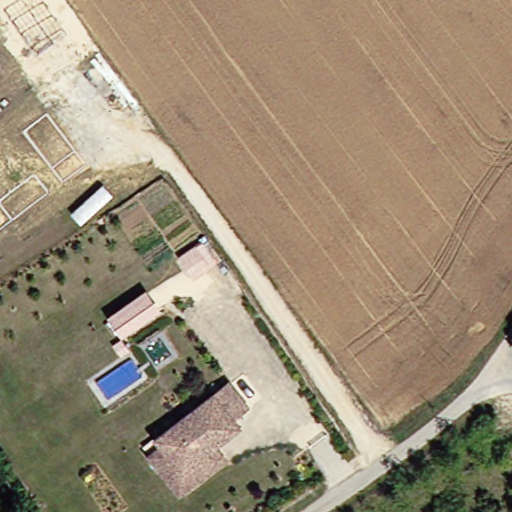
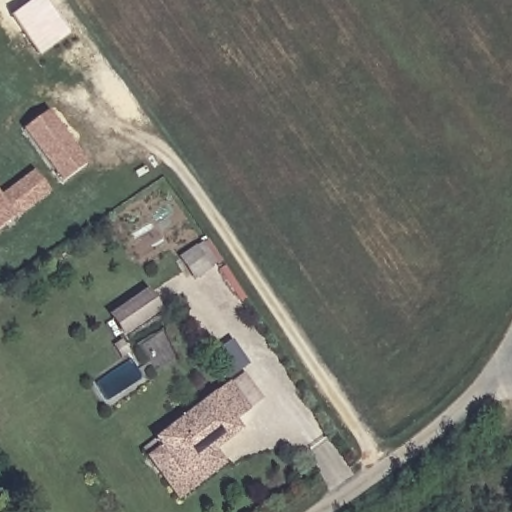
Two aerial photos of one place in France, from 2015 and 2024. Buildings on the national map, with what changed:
new [(29,0),(47,0),(70,33),(38,55),(9,15),(29,0)]
new [(48,112),(85,163),(62,182),(24,130),(48,112)]
new [(47,192),(0,227),(0,200),(33,174),(47,192)]
unchanged [(208,264),(221,283),(207,292),(194,273),(208,264)]
unchanged [(162,311),(124,338),(108,316),(147,289),(162,311)]
unchanged [(244,417),(230,429),(237,437),(212,460),(182,487),(160,461),(153,453),(222,392),(244,417)]
unchanged [(222,471),(177,512),(145,475),(160,461),(182,487),(212,460),(222,471)]

